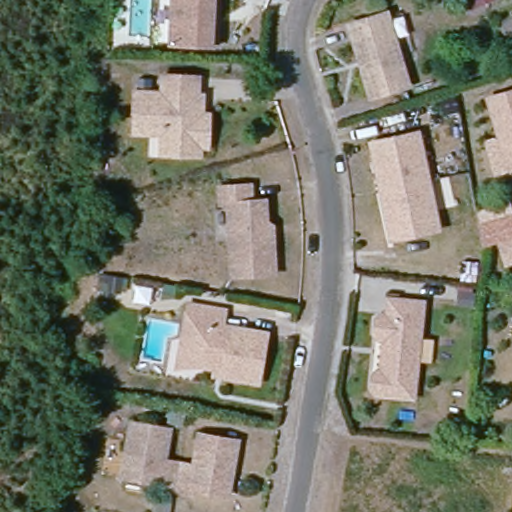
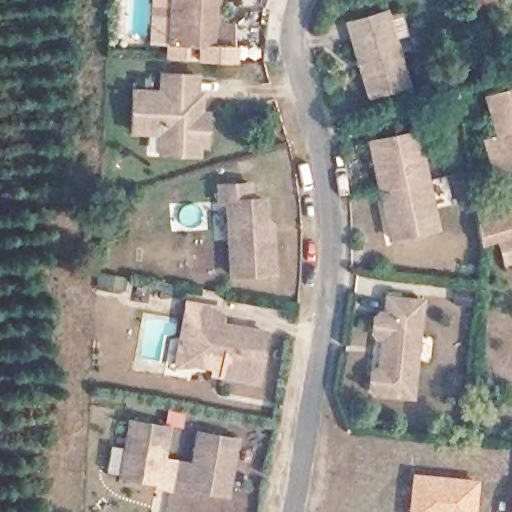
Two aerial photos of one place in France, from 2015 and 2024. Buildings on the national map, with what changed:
unchanged [(214,42),(208,41),(168,38),(172,0),(217,0),(214,42)]
unchanged [(504,11),(483,18),(480,19),(474,0),(501,0),(504,11)]
unchanged [(387,8),(407,81),(370,92),(349,19),(387,8)]
unchanged [(203,157),(195,157),(195,166),(185,166),(157,164),(158,144),(129,143),(131,102),(159,104),(159,85),(194,87),(193,105),(198,106),(197,126),(204,126),(203,157)]
unchanged [(490,97),(512,91),(512,167),(508,168),(505,156),(490,97)]
unchanged [(390,216),(379,163),(374,164),(369,142),(416,132),(436,229),(390,239),(385,217),(390,216)]
unchanged [(230,273),(227,199),(220,200),(219,183),(249,182),(249,197),(263,197),(264,222),(269,222),(270,231),(271,271),(230,273)]
unchanged [(499,235),(482,240),(478,220),(512,211),(512,254),(505,256),(499,235)]
unchanged [(132,307),(117,306),(109,305),(111,290),(119,291),(133,293),(132,307)]
unchanged [(415,396),(378,392),(373,388),(375,375),(381,369),(384,370),(387,339),(382,338),(377,331),(378,319),(385,313),(390,314),(392,298),(426,302),(415,396)]
unchanged [(213,369),(190,365),(185,348),(189,323),(184,322),(187,306),(222,312),(220,326),(264,333),(256,383),(221,377),(212,376),(213,369)]
unchanged [(164,428),(161,460),(192,463),(195,431),(232,434),(227,489),(190,485),(190,489),(157,486),(158,482),(121,479),(126,424),(164,428)]
new [(480,479),(476,512),(407,512),(411,471),(480,479)]

